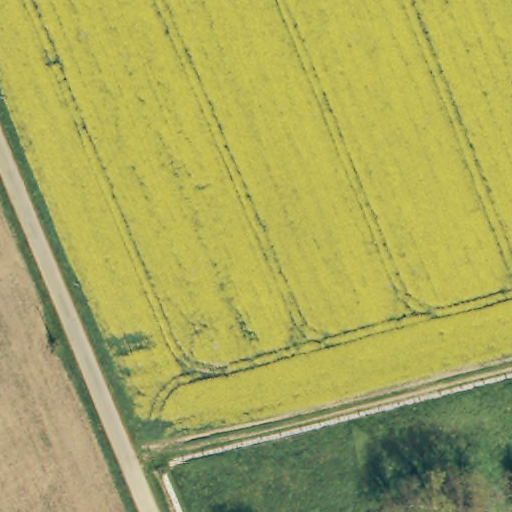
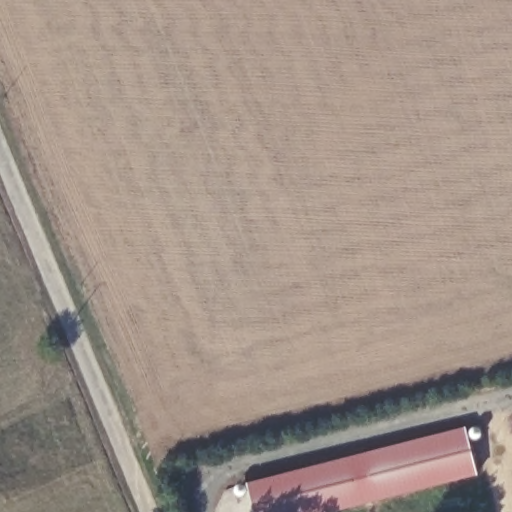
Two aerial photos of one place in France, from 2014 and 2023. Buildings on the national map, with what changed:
new [(478,475),(331,512),(255,512),(247,482),(465,426),(478,475)]

